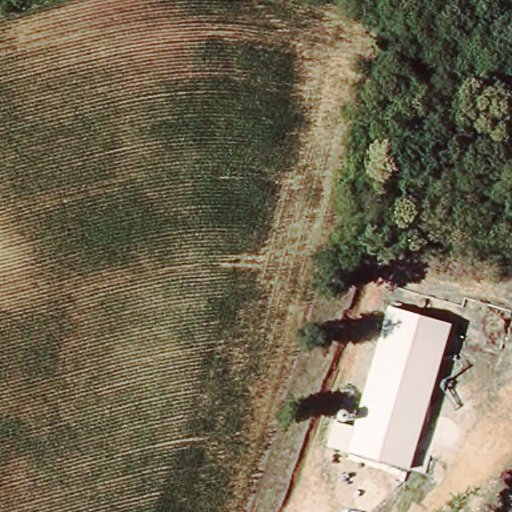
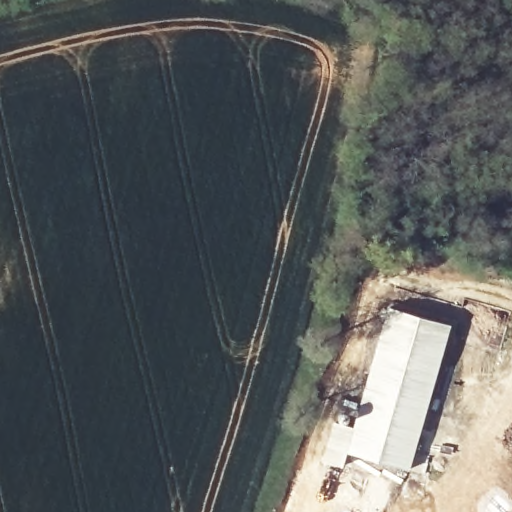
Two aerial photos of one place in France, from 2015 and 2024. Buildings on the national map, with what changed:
unchanged [(332,422),(352,427),(388,306),(451,324),(409,471),(326,448),(332,422)]

